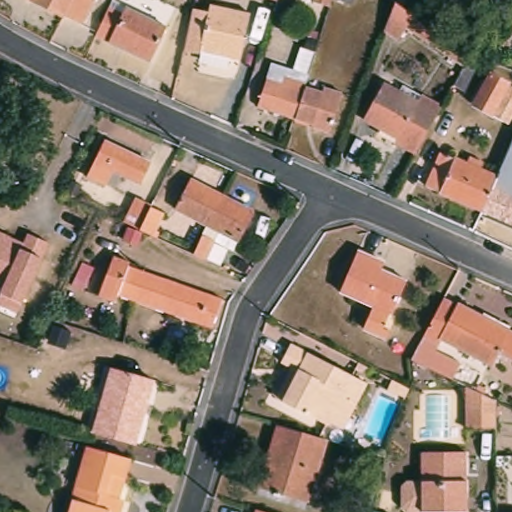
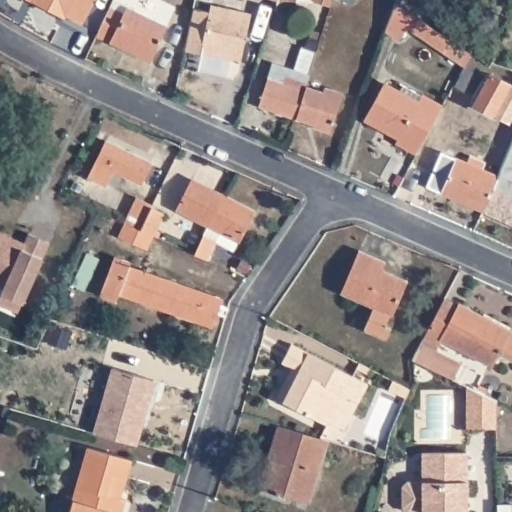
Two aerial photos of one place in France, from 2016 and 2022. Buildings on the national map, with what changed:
unchanged [(66,17),(65,20),(33,2),(34,0),(97,0),(83,26),(66,17)]
unchanged [(277,1),(272,0),(296,0),(291,17),(273,12),(277,1)]
unchanged [(314,4),(316,0),(333,0),(330,9),(314,4)]
unchanged [(340,0),(355,0),(353,5),(340,0)]
unchanged [(467,94),(453,86),(464,67),(407,29),(399,41),(383,31),(394,4),(470,55),(469,57),(482,65),(467,94)]
unchanged [(124,15),(127,10),(165,27),(149,62),(97,37),(110,10),(124,15)]
unchanged [(210,17),(212,10),(251,19),(240,66),(201,57),(201,60),(184,56),(193,14),(210,17)]
unchanged [(258,114),(271,70),(293,76),(300,54),(316,59),(305,94),(303,99),(295,125),(258,114)]
unchanged [(473,106),(489,75),(512,87),(512,126),(473,106)]
unchanged [(396,144),(398,140),(366,122),(385,86),(398,94),(402,87),(441,108),(416,155),(396,144)]
unchanged [(322,99),(324,95),(342,100),(330,140),(312,134),(313,130),(295,125),(303,99),(305,94),(322,99)]
unchanged [(140,185),(111,171),(104,188),(87,180),(106,141),(151,164),(140,185)]
unchanged [(512,145),(512,178),(500,173),(512,145)]
unchanged [(427,188),(441,154),(496,179),(482,211),(427,188)]
unchanged [(498,179),(500,173),(512,178),(512,225),(482,211),(496,179),(498,179)]
unchanged [(176,211),(191,181),(224,197),(209,227),(176,211)]
unchanged [(209,227),(224,197),(253,211),(233,252),(214,244),(220,233),(209,227)]
unchanged [(136,199),(150,204),(138,230),(124,223),(136,199)]
unchanged [(165,215),(155,237),(139,230),(150,209),(165,215)]
unchanged [(0,236),(0,232),(1,232),(0,236)]
unchanged [(0,286),(0,236),(1,232),(12,237),(10,242),(23,248),(30,233),(50,242),(22,303),(18,312),(0,304),(0,299),(2,294),(5,288),(0,286)]
unchanged [(207,261),(195,256),(203,240),(214,244),(207,261)]
unchanged [(212,330),(117,297),(116,304),(99,298),(114,256),(131,262),(130,267),(222,299),(212,330)]
unchanged [(384,268),(380,276),(405,287),(385,333),(390,335),(386,345),(363,335),(373,312),(341,299),(359,257),(384,268)]
unchanged [(72,288),(82,265),(93,270),(82,293),(72,288)]
unchanged [(497,354),(490,367),(440,341),(438,347),(424,340),(444,300),(457,307),(458,305),(512,333),(512,362),(497,354)]
unchanged [(333,425),(331,428),(283,405),(276,400),(292,369),(281,365),(291,345),(366,383),(351,415),(344,430),(333,425)]
unchanged [(109,370),(151,381),(142,412),(146,413),(137,447),(133,446),(92,435),(109,370)]
unchanged [(407,397),(391,389),(395,380),(411,388),(407,397)]
unchanged [(466,412),(466,389),(496,403),(496,431),(482,431),(466,431),(466,412)]
unchanged [(273,442),(277,426),(326,441),(309,504),(266,492),(258,490),(273,442)]
unchanged [(134,460),(124,499),(121,498),(117,511),(121,512),(75,512),(93,447),(134,460)]
unchanged [(471,512),(411,512),(407,508),(406,487),(411,482),(426,482),(425,453),(470,452),(471,512)]
unchanged [(261,511),(263,512),(261,512),(261,511)]

